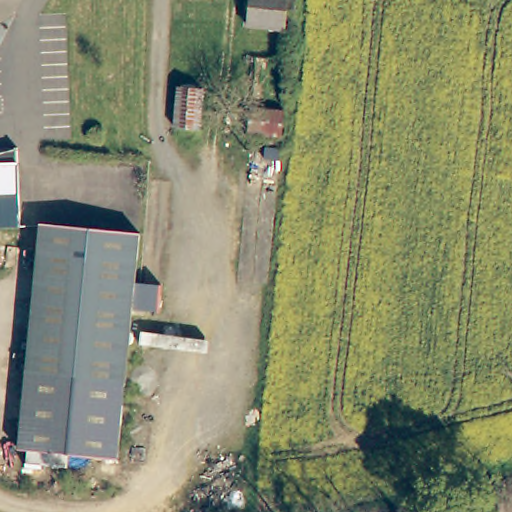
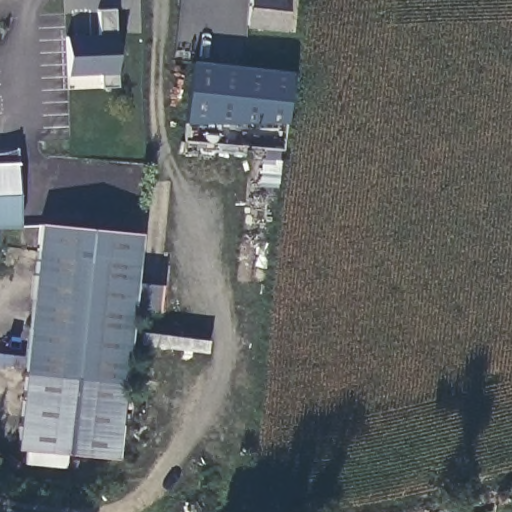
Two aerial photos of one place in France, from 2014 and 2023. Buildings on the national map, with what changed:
unchanged [(285,29),(249,25),(251,0),(295,0),(295,9),(293,19),(286,18),(285,29)]
new [(118,87),(101,87),(100,75),(66,76),(63,33),(96,30),(95,9),(114,7),(118,87)]
new [(288,122),(184,125),(191,60),(292,72),(288,122)]
unchanged [(21,223),(0,223),(0,160),(19,160),(21,223)]
unchanged [(163,285),(160,310),(133,308),(116,459),(17,448),(41,225),(141,234),(136,282),(163,285)]

